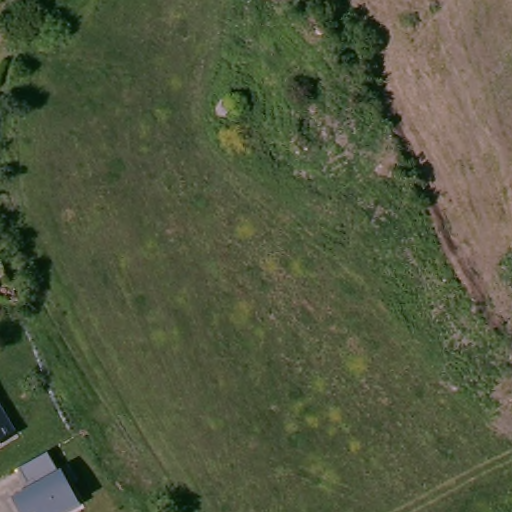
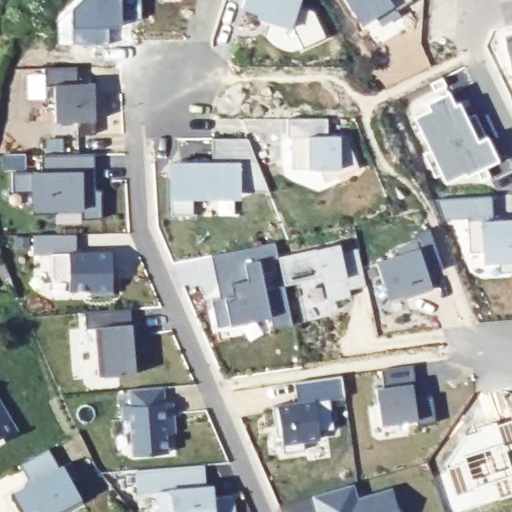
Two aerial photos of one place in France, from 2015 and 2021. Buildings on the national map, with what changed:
new [(297,5),(314,10),(325,37),(301,48),(291,25),(257,15),(258,12),(240,7),(243,0),(299,0),(297,5)]
new [(512,74),(511,75),(503,39),(512,37),(512,74)]
new [(76,68),(76,84),(92,84),(94,135),(76,135),(75,121),(53,122),(53,104),(43,104),(42,69),(76,68)]
new [(285,119),(325,119),(325,136),(344,136),(357,169),(323,182),(317,170),(289,170),(289,137),(285,137),(285,119)]
new [(216,197),(191,197),(191,216),(169,216),(169,175),(169,164),(178,164),(210,164),(210,139),(246,139),(263,181),(267,192),(237,192),(237,197),(216,197)]
new [(39,172),(39,155),(92,155),(92,172),(86,172),(86,190),(99,190),(99,219),(79,219),(79,209),(52,210),(52,214),(30,214),(30,191),(10,191),(9,172),(39,172)]
new [(468,253),(465,219),(441,221),(433,201),(490,197),(491,222),(512,221),(512,272),(498,273),(497,262),(482,263),(482,260),(481,252),(468,253)]
new [(33,235),(75,235),(75,253),(111,252),(112,295),(91,295),(91,290),(69,290),(69,280),(51,280),(50,255),(33,255),(33,235)]
new [(396,250),(394,242),(414,235),(430,283),(409,290),(407,287),(386,295),(374,257),(396,250)]
new [(276,260),(282,286),(292,328),(273,332),(269,318),(231,327),(216,332),(209,300),(219,297),(209,258),(274,243),(276,257),(276,260)]
new [(340,252),(351,250),(356,249),(364,286),(348,290),(349,297),(326,302),(321,277),(282,285),(276,257),(338,244),(340,252)]
new [(127,309),(129,325),(137,324),(139,344),(130,345),(133,374),(95,377),(91,328),(82,329),(81,313),(127,309)]
new [(382,388),(379,371),(411,366),(414,385),(410,385),(413,400),(430,397),(434,423),(415,425),(414,420),(379,425),(374,389),(382,388)]
new [(328,399),(321,400),(318,380),(340,376),(343,398),(328,399)]
new [(128,390),(160,387),(162,403),(165,403),(170,403),(171,415),(172,433),(164,434),(166,453),(131,456),(128,420),(121,420),(120,407),(129,406),(128,390)]
new [(274,429),(271,407),(321,400),(328,400),(332,430),(317,432),(318,440),(302,442),(303,451),(282,454),(279,437),(275,437),(274,429)]
unchanged [(14,443),(0,451),(0,419),(14,443)]
unchanged [(36,512),(35,511),(34,512),(20,512),(9,491),(25,482),(17,467),(44,454),(53,469),(60,466),(78,500),(61,512),(36,512)]
new [(211,486),(212,498),(230,497),(231,512),(170,512),(170,510),(157,510),(155,492),(135,493),(134,470),(202,465),(204,487),(211,486)]
new [(357,497),(391,489),(398,512),(316,512),(312,497),(353,485),(357,497)]

